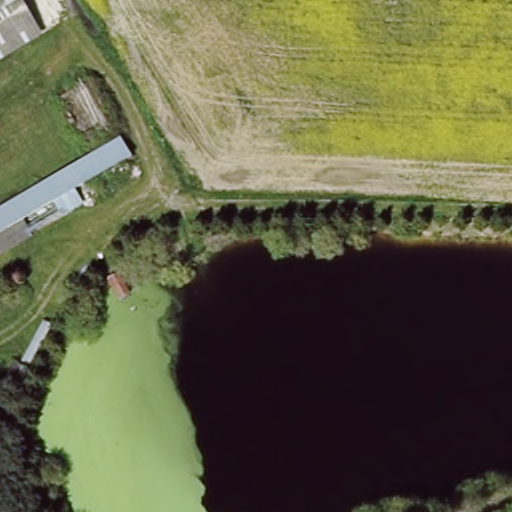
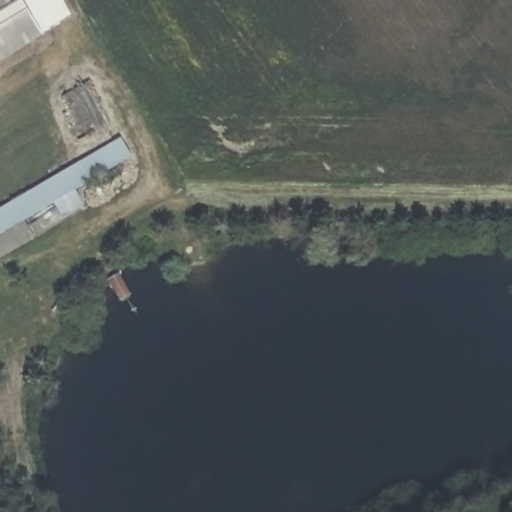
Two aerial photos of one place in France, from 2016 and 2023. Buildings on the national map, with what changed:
unchanged [(0,53),(0,0),(21,0),(37,29),(0,53)]
unchanged [(135,160),(87,190),(96,203),(0,262),(0,207),(122,140),(135,160)]

